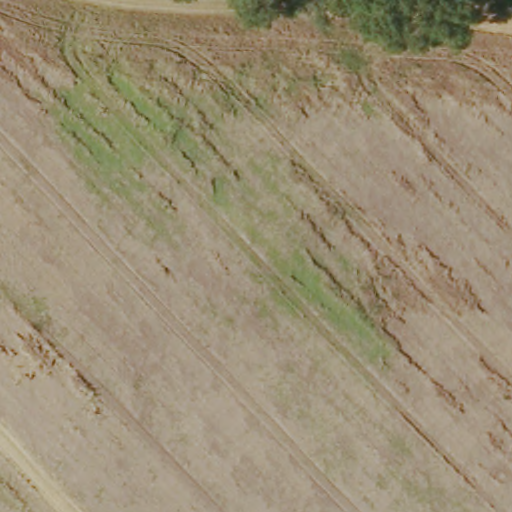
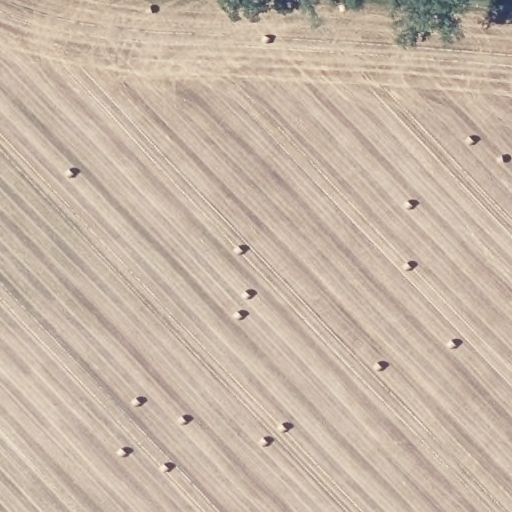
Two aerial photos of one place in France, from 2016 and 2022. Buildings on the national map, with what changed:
[]

